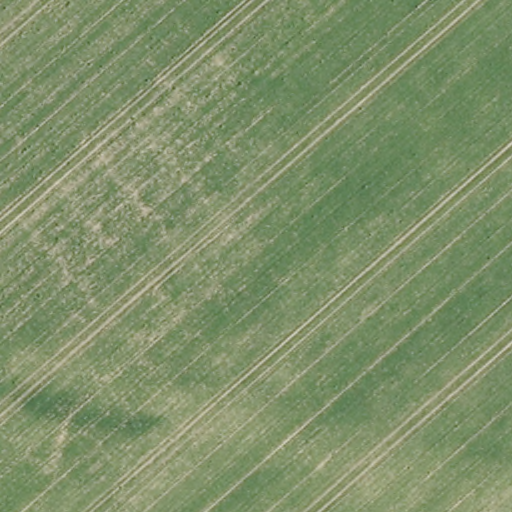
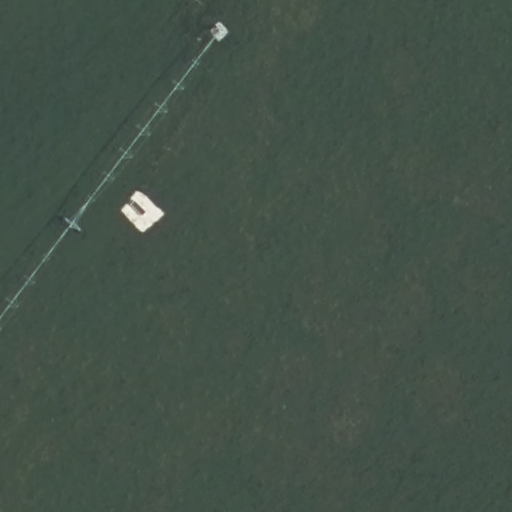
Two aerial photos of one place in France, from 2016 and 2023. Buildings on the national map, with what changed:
[]

